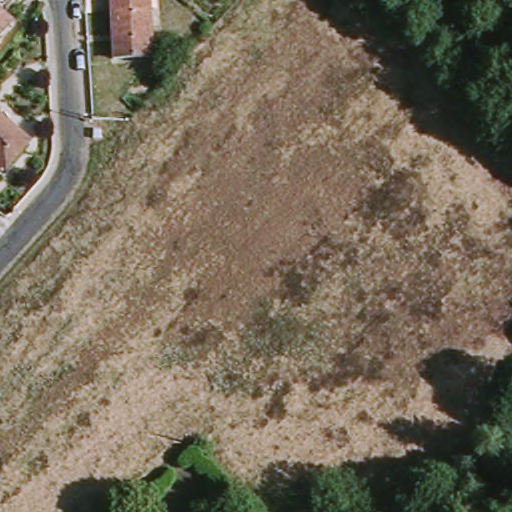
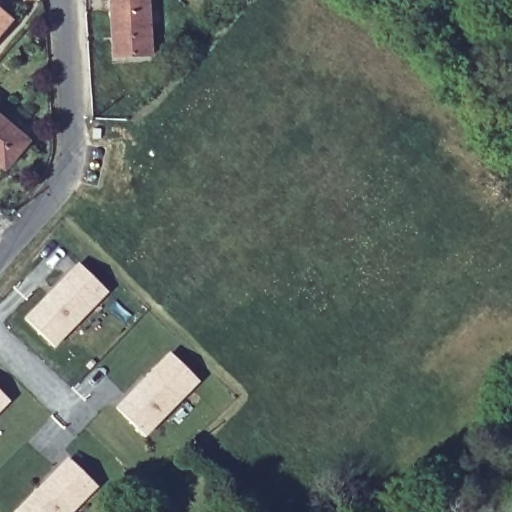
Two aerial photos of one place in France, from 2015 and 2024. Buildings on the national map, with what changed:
unchanged [(120,57),(115,1),(126,0),(152,0),(155,54),(120,57)]
unchanged [(15,32),(0,48),(0,18),(15,32)]
unchanged [(30,145),(6,173),(0,167),(0,119),(30,145)]
new [(79,266),(107,293),(53,348),(25,321),(79,266)]
new [(171,356),(199,383),(145,438),(117,411),(171,356)]
new [(9,402),(0,410),(0,393),(9,402)]
new [(70,461),(98,488),(75,512),(19,512),(70,461)]

